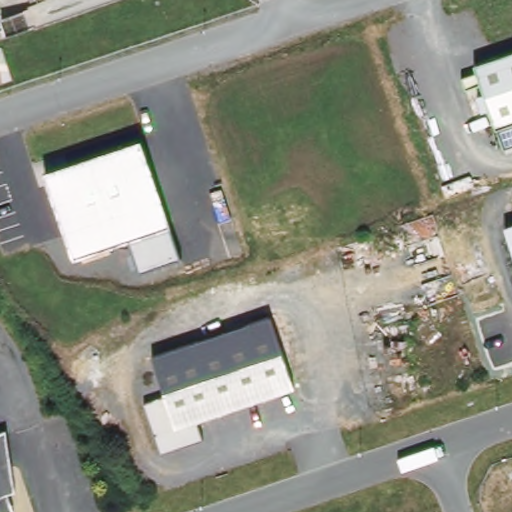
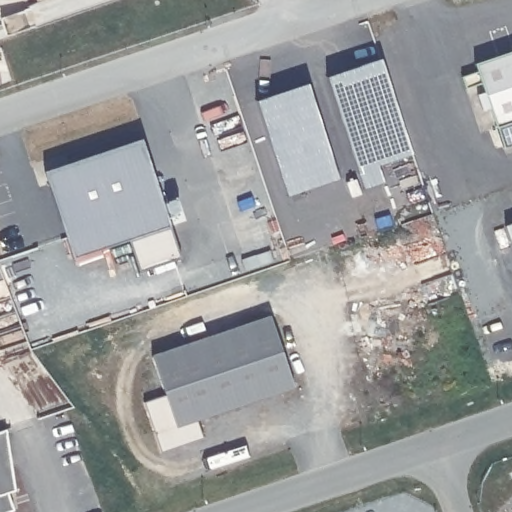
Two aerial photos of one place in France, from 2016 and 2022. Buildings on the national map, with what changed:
unchanged [(512,149),(500,153),(479,66),(512,54),(512,149)]
new [(381,58),(414,157),(380,169),(385,183),(365,189),(326,76),(381,58)]
new [(308,83),(340,178),(288,195),(256,100),(308,83)]
unchanged [(143,139),(179,259),(139,270),(130,240),(73,258),(44,172),(143,139)]
unchanged [(512,251),(504,224),(512,222),(512,251)]
unchanged [(278,313),(302,384),(205,416),(212,436),(169,450),(152,399),(174,392),(161,353),(278,313)]
unchanged [(11,512),(0,512),(0,431),(6,429),(15,491),(8,494),(15,511),(11,512)]

